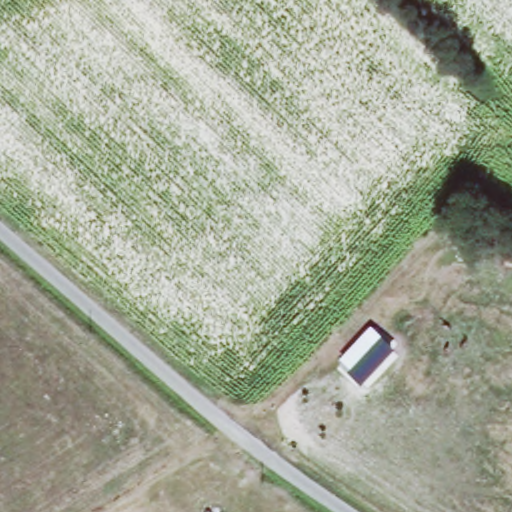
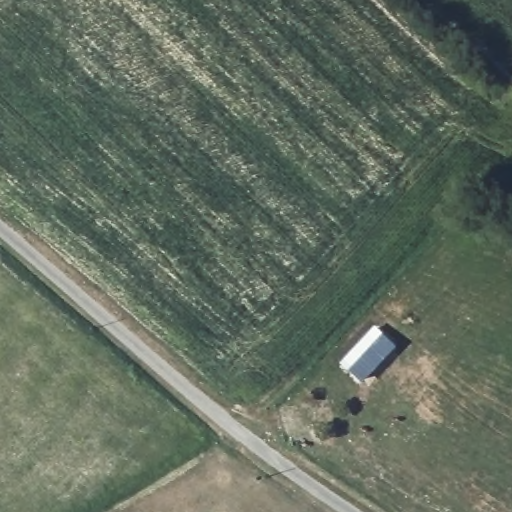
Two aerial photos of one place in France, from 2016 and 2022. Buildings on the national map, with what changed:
unchanged [(394,348),(360,383),(338,360),(371,323),(394,348)]

